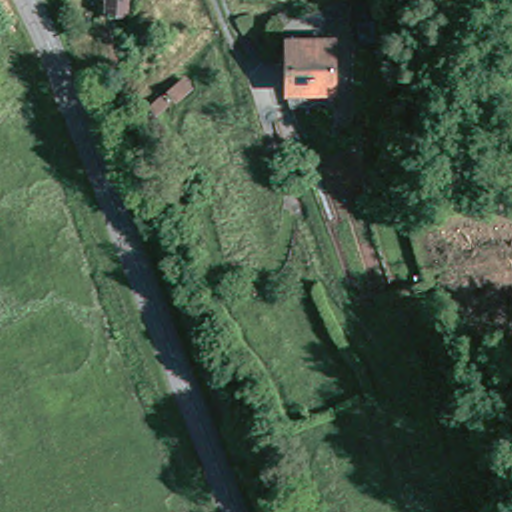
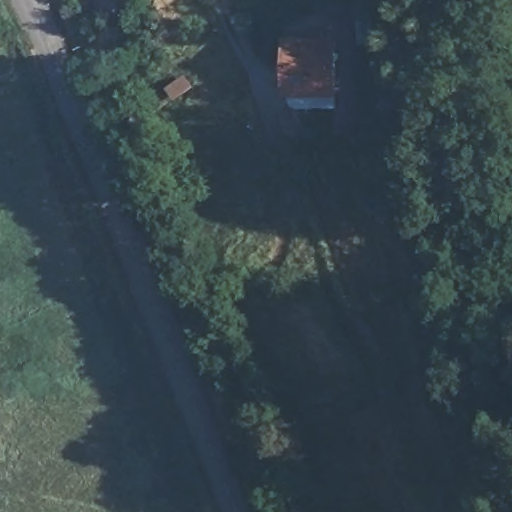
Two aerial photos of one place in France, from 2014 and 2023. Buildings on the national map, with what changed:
unchanged [(116,66),(118,47),(113,46),(113,41),(104,40),(107,0),(134,0),(131,41),(155,44),(153,69),(116,66)]
unchanged [(334,32),(334,83),(333,99),(292,99),(292,83),(293,32),(334,32)]

